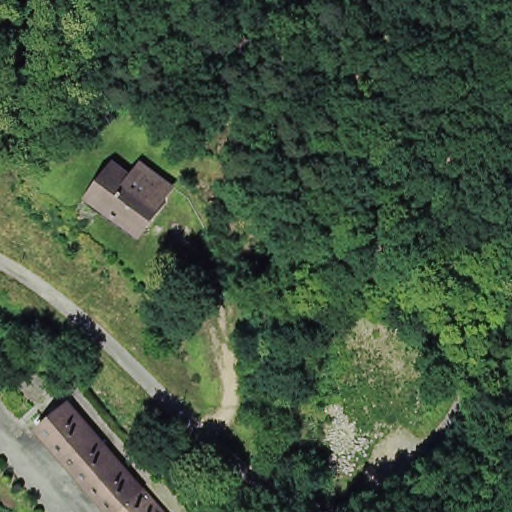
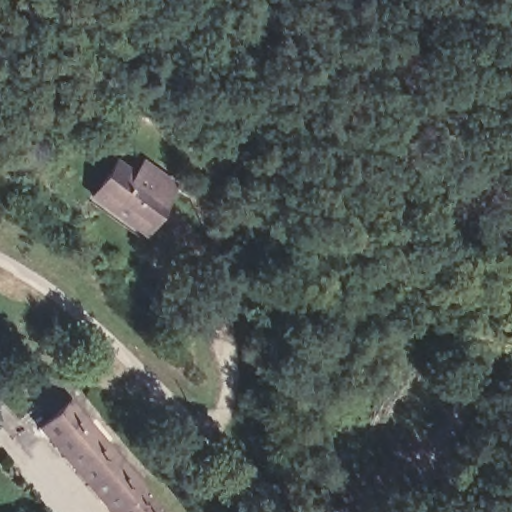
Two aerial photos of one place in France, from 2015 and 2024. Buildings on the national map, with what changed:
unchanged [(120,153),(139,167),(147,154),(177,175),(167,189),(172,192),(147,225),(142,231),(90,193),(95,186),(120,153)]
unchanged [(115,512),(37,421),(42,415),(35,406),(45,396),(54,403),(65,395),(166,512),(115,512)]

